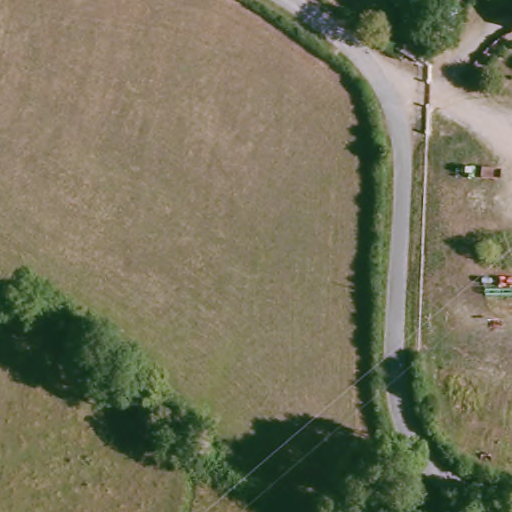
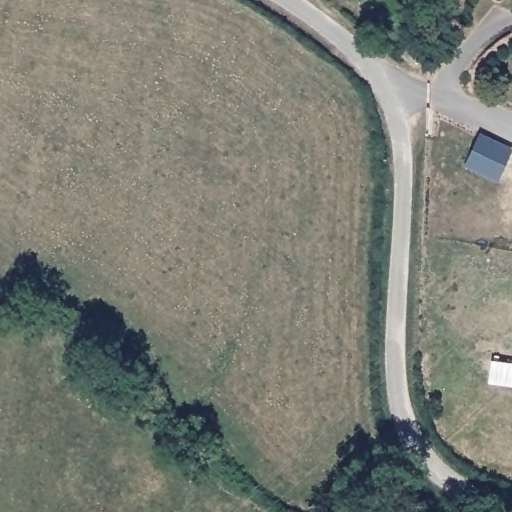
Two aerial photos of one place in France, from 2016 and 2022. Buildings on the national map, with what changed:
unchanged [(512,12),(512,30),(507,29),(512,12)]
new [(480,136),(509,150),(495,180),(466,166),(480,136)]
new [(492,362),(512,365),(512,386),(489,383),(492,362)]

